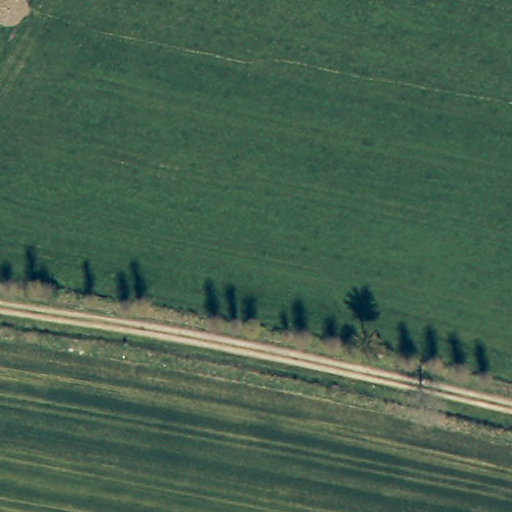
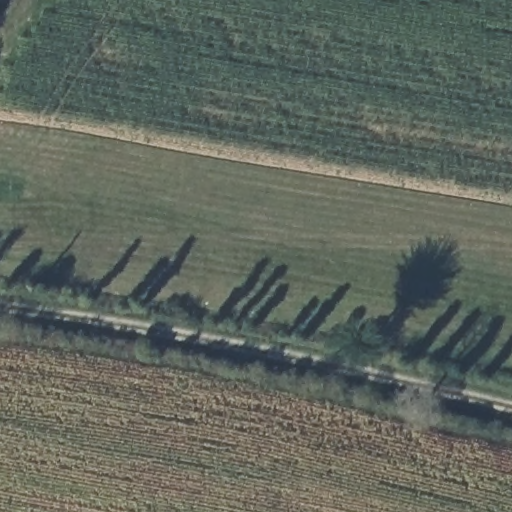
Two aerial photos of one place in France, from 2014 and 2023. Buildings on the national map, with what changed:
[]

